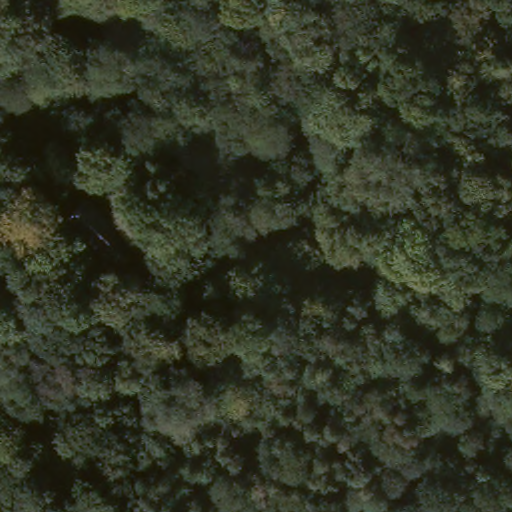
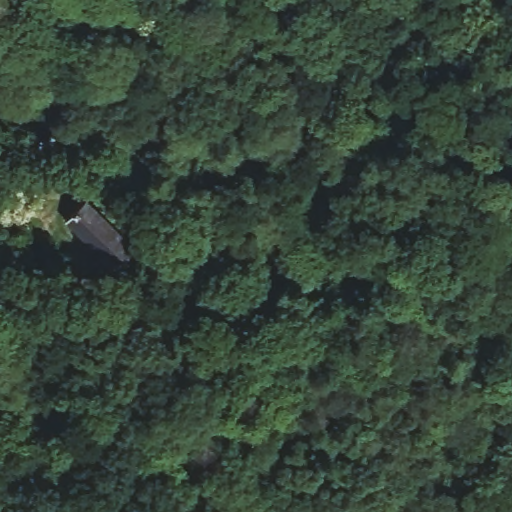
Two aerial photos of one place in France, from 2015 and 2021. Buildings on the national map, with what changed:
unchanged [(51,230),(75,202),(131,249),(108,277),(51,230)]

